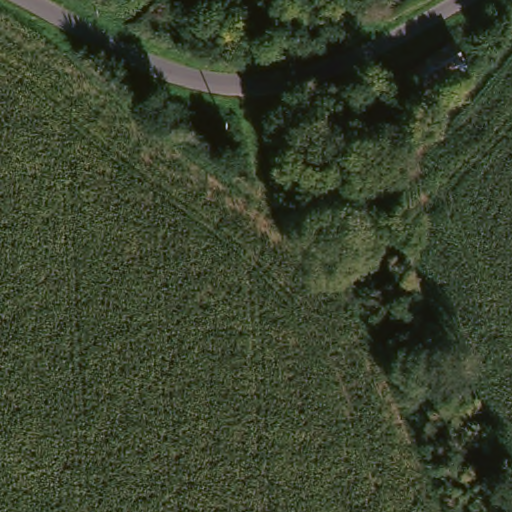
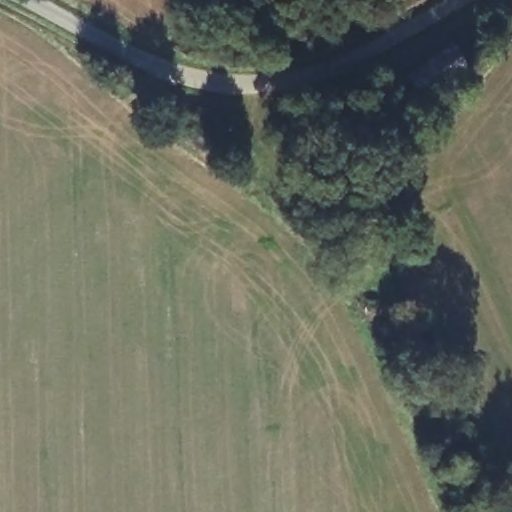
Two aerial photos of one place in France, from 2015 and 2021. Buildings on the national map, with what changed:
unchanged [(423,101),(402,72),(413,67),(450,47),(469,73),(423,101)]

